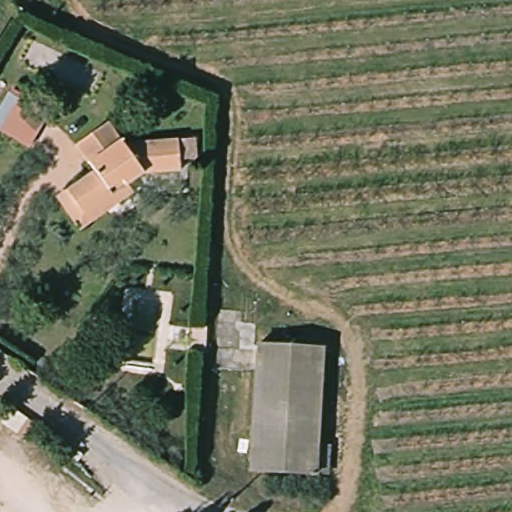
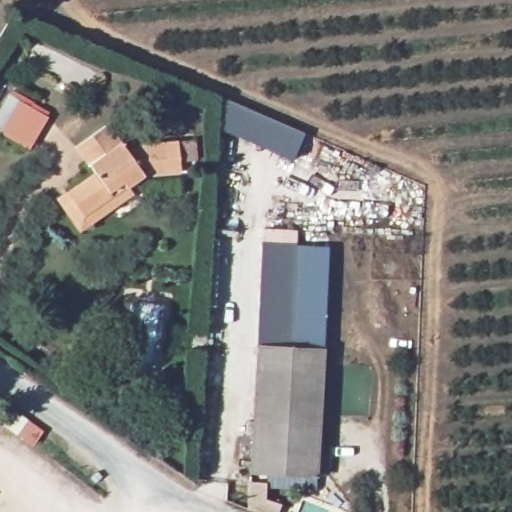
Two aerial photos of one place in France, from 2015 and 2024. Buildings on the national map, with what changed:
new [(303,134),(292,161),(219,128),(220,97),(303,134)]
unchanged [(47,113),(28,147),(0,131),(0,128),(17,100),(47,113)]
unchanged [(102,122),(119,145),(171,139),(174,171),(132,174),(119,185),(125,191),(73,231),(50,201),(86,173),(67,148),(102,122)]
new [(260,242),(295,244),(290,343),(255,342),(260,242)]
new [(323,344),(321,344),(290,343),(295,244),(327,246),(323,344)]
unchanged [(202,353),(188,352),(190,325),(204,327),(202,353)]
unchanged [(321,344),(315,469),(247,467),(255,342),(321,344)]
unchanged [(40,429),(32,442),(2,421),(10,410),(40,429)]
new [(266,499),(280,504),(278,512),(253,512),(247,509),(248,482),(266,482),(266,499)]

